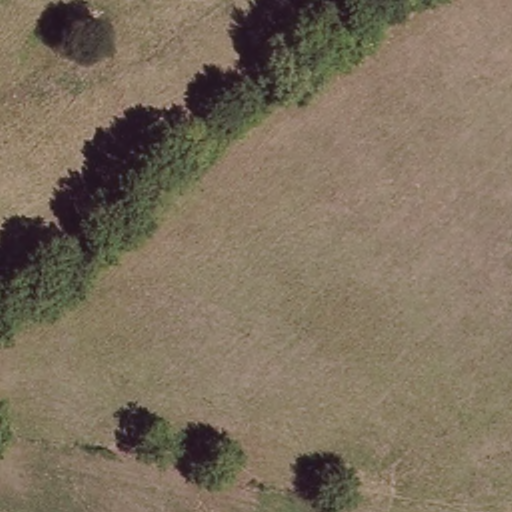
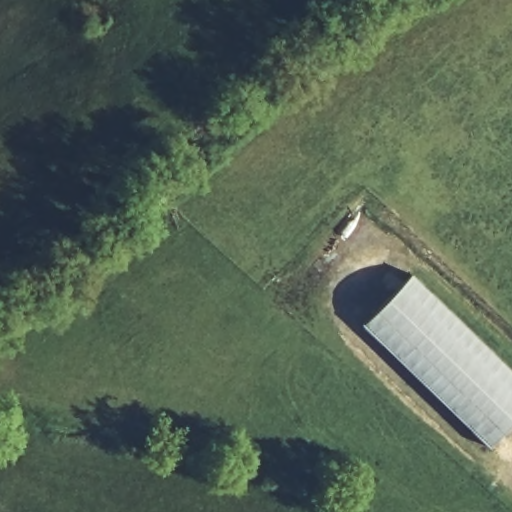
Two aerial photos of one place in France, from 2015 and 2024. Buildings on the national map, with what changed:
new [(362,326),(411,271),(512,370),(512,426),(489,449),(362,326)]

